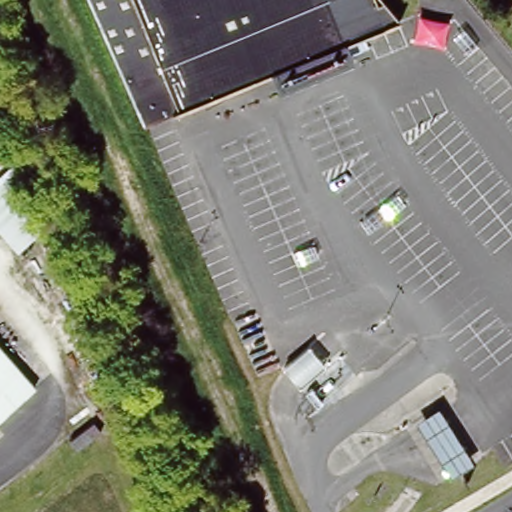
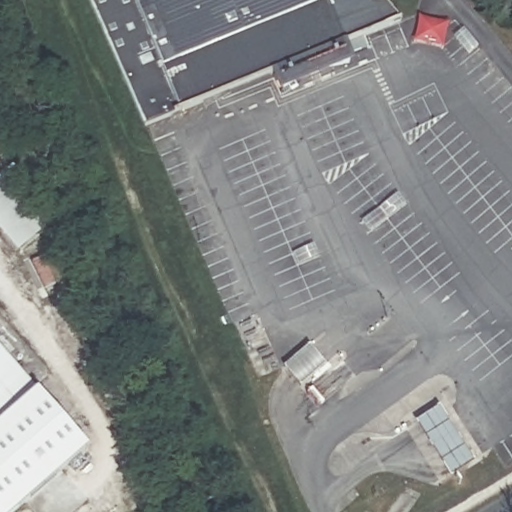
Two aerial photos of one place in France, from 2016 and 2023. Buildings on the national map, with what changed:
unchanged [(267,74),(171,114),(133,129),(125,109),(80,0),(320,0),(338,45),(267,74)]
unchanged [(348,42),(355,59),(277,91),(267,74),(338,45),(320,0),(381,0),(400,22),(348,42)]
unchanged [(23,166),(62,215),(22,256),(0,229),(0,186),(23,166)]
unchanged [(33,388),(0,417),(0,350),(33,388)]
new [(18,512),(0,512),(0,417),(33,388),(37,391),(91,449),(18,512)]
unchanged [(462,460),(442,472),(412,425),(432,413),(462,460)]

